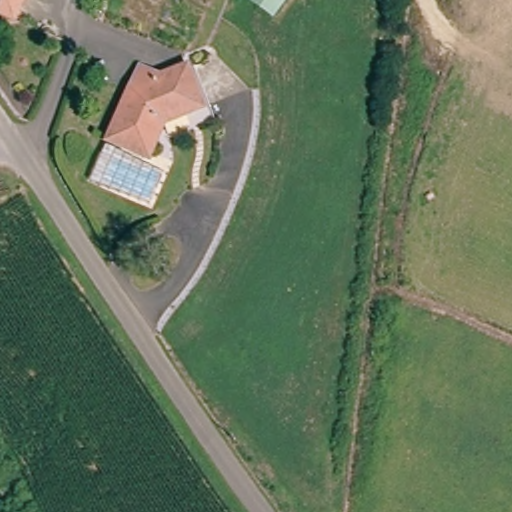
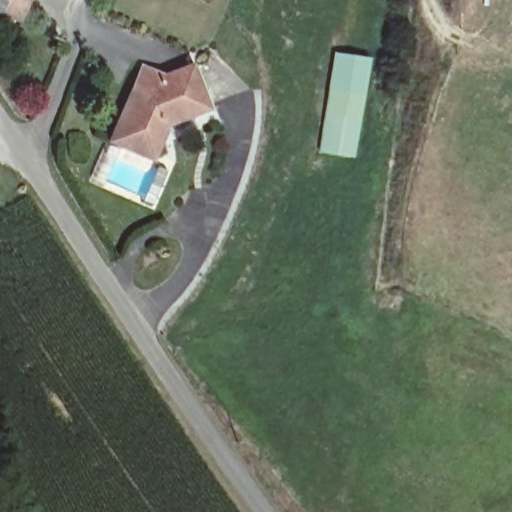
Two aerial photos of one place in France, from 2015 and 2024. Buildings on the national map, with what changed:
unchanged [(0,16),(0,0),(23,0),(12,22),(0,16)]
new [(333,52),(369,58),(353,159),(317,152),(333,52)]
unchanged [(213,97),(201,102),(159,122),(145,157),(104,135),(135,72),(149,81),(195,59),(207,84),(213,97)]

